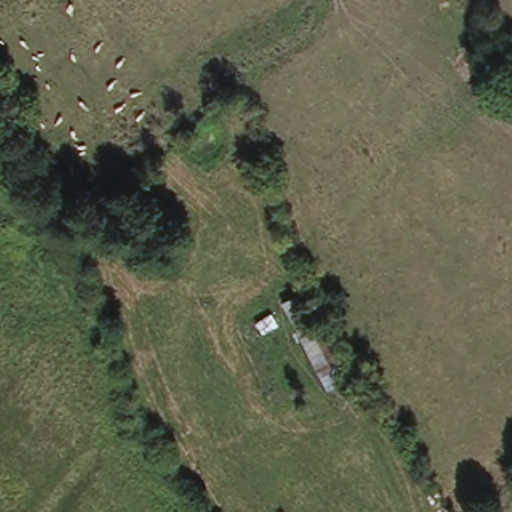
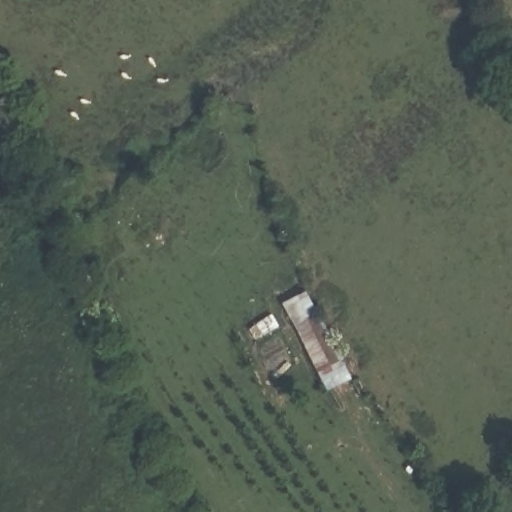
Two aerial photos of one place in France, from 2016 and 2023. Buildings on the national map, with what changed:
unchanged [(295,292),(326,347),(308,357),(283,300),(295,292)]

